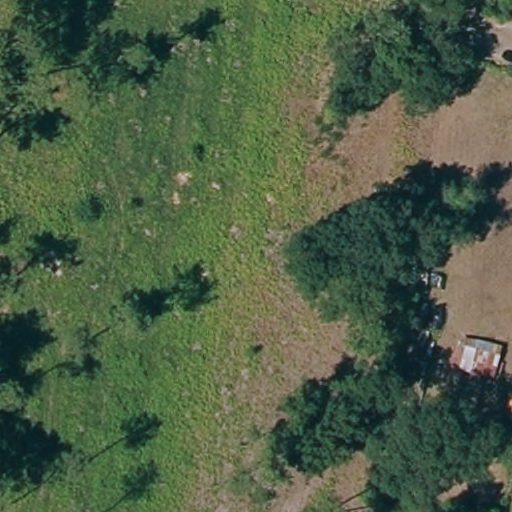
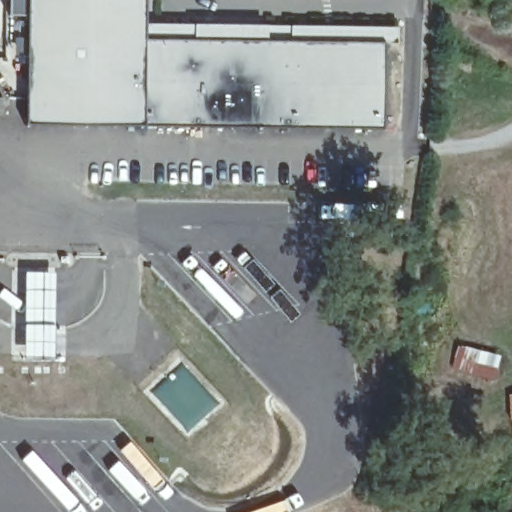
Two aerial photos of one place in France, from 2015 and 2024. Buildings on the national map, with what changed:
new [(268,25),(397,26),(396,44),(384,43),(383,125),(27,121),(28,0),(146,0),(146,21),(268,25)]
new [(7,119),(0,119),(0,101),(6,101),(7,119)]
new [(23,276),(53,276),(52,364),(22,364),(23,276)]
unchanged [(454,371),(459,339),(502,348),(497,380),(454,371)]

